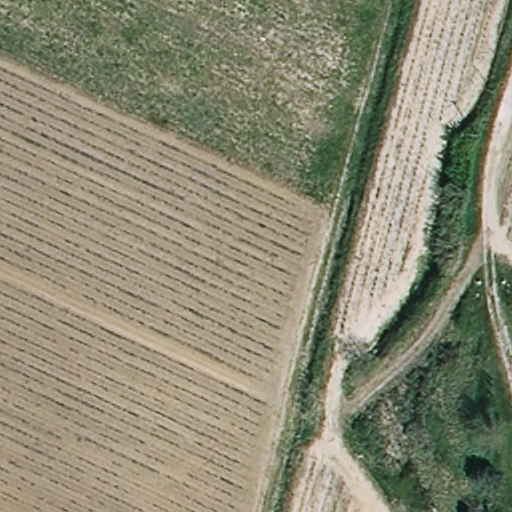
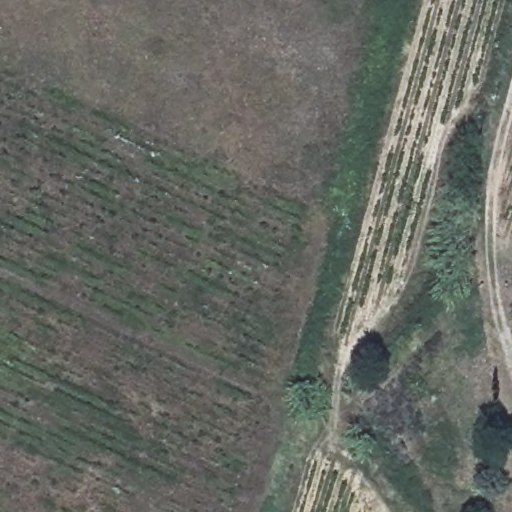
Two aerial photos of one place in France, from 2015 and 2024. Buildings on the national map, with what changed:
[]

